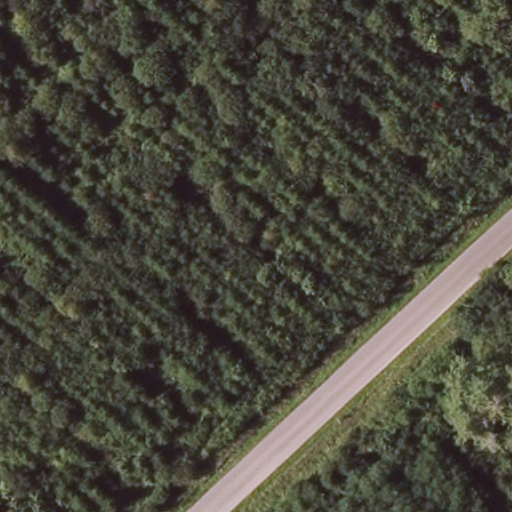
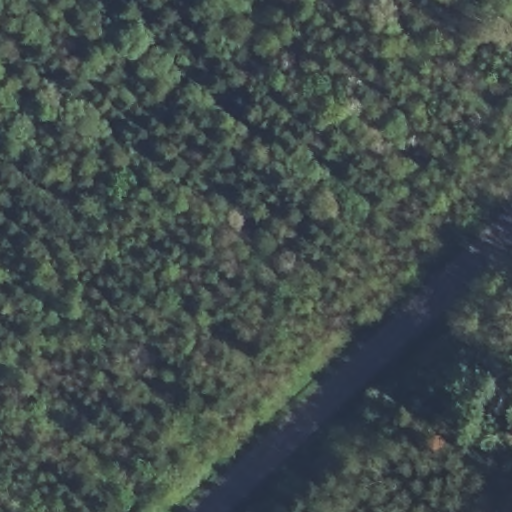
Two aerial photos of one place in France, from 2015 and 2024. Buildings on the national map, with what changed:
[]

